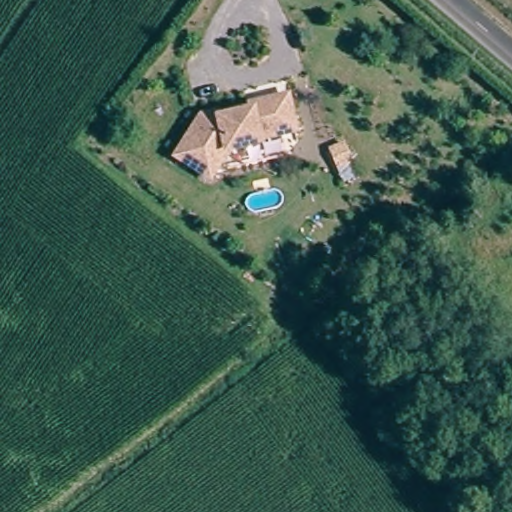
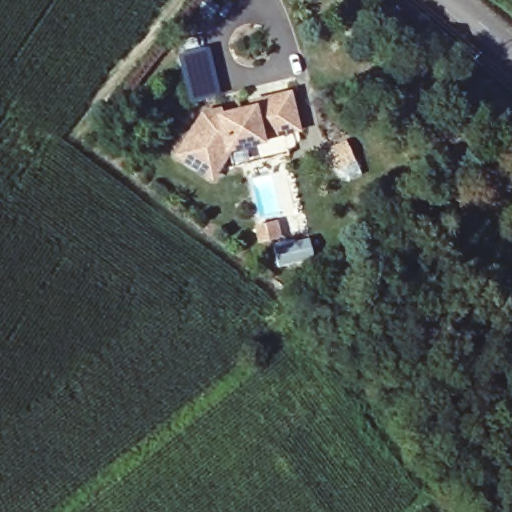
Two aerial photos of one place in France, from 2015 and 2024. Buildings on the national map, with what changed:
new [(211,61),(220,94),(187,102),(176,54),(204,48),(207,62),(211,61)]
unchanged [(267,144),(240,149),(239,144),(230,146),(231,151),(212,176),(180,152),(209,113),(225,110),(226,116),(266,109),(265,103),(281,100),(296,97),(302,132),(288,135),(266,139),(267,144)]

